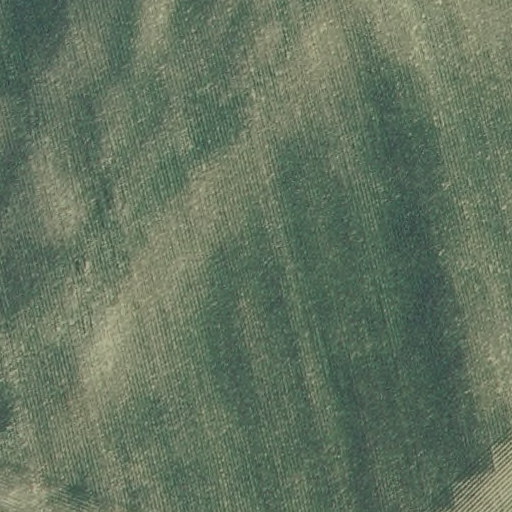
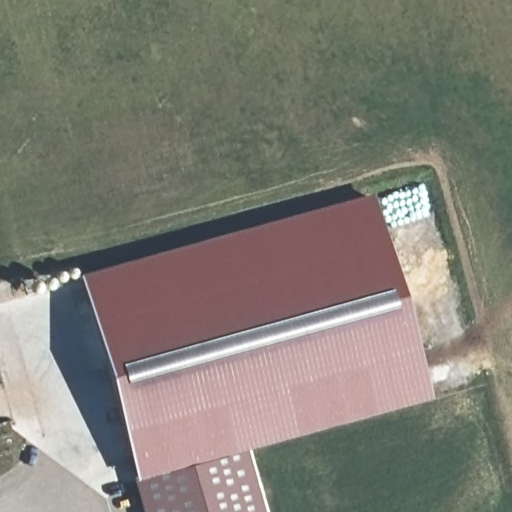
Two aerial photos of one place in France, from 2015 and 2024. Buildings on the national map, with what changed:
new [(375,192),(430,401),(244,452),(260,512),(140,512),(72,275),(375,192)]

